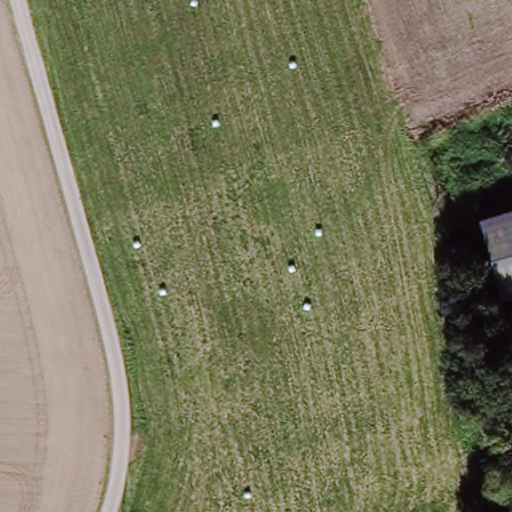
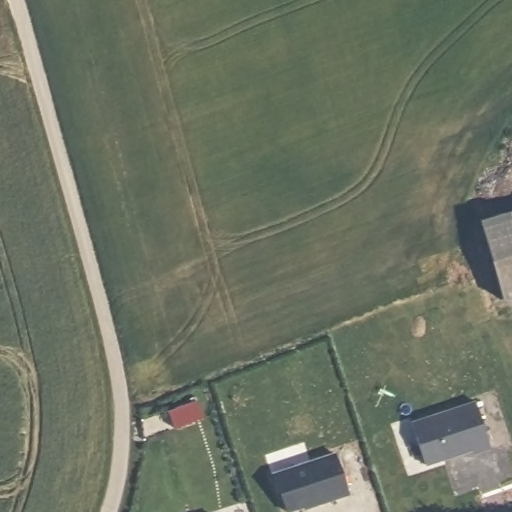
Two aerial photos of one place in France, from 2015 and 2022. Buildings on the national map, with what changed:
unchanged [(512,299),(501,302),(481,218),(512,209),(512,299)]
new [(476,402),(491,448),(475,453),(474,450),(426,466),(412,423),(476,402)]
new [(336,454),(349,495),(333,500),(331,497),(288,512),(281,491),(279,492),(273,475),(336,454)]

